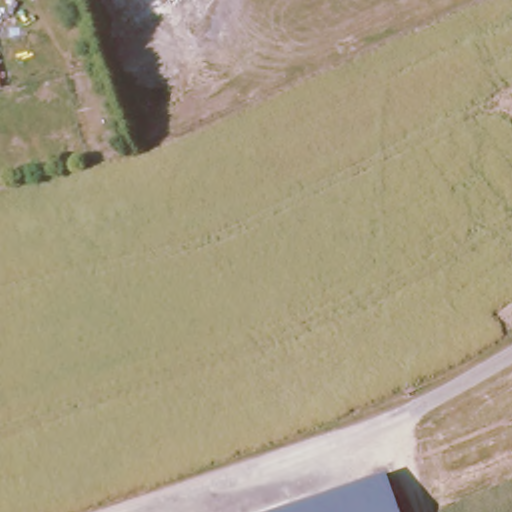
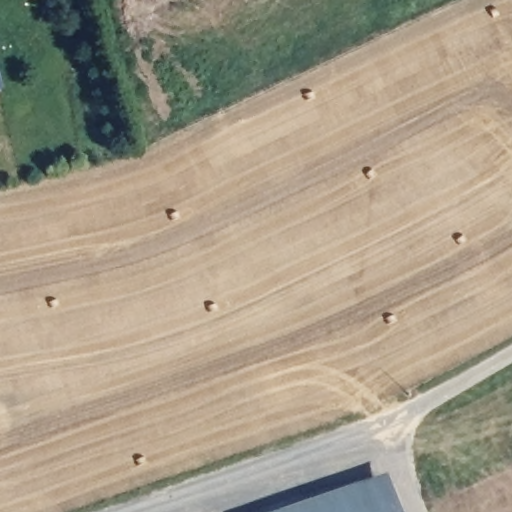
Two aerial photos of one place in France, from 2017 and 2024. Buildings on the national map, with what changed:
unchanged [(386,473),(398,512),(272,512),(386,473)]

